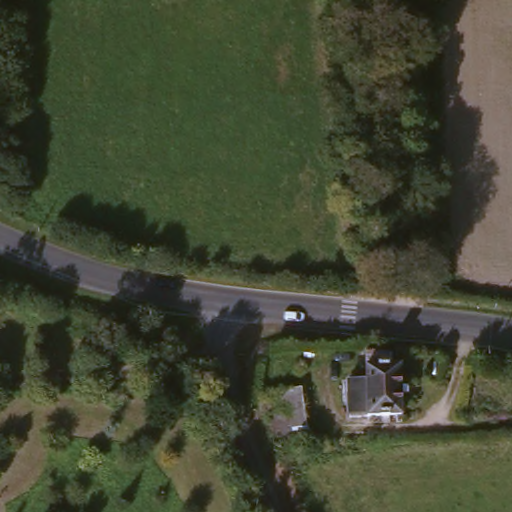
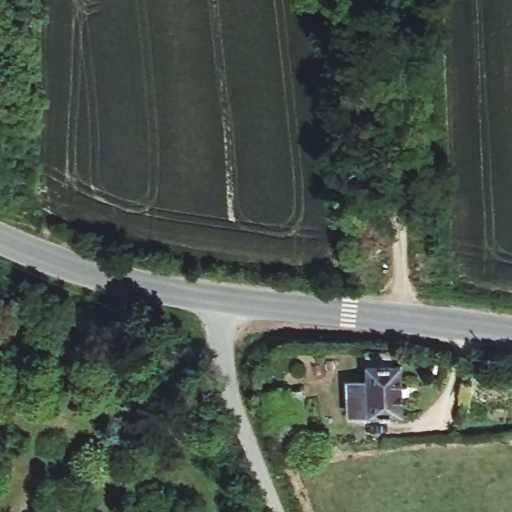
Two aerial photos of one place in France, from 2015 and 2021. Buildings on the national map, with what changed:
unchanged [(354,414),(354,378),(374,377),(374,352),(395,351),(396,365),(408,366),(409,414),(354,414)]
unchanged [(275,429),(273,394),(292,392),(292,397),(313,394),(314,425),(275,429)]

